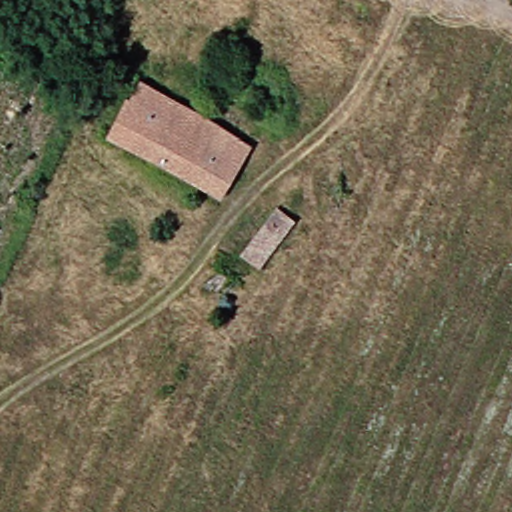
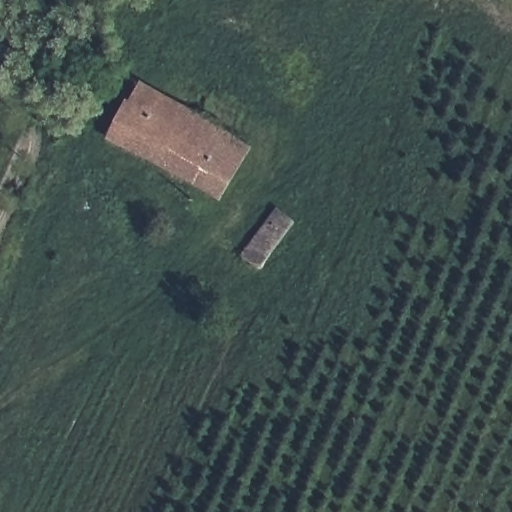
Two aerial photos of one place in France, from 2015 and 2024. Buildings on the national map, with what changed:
unchanged [(177,108),(168,126),(154,117),(135,153),(106,137),(134,84),(177,108)]
unchanged [(235,170),(168,126),(177,108),(218,132),(246,150),(235,170)]
unchanged [(235,170),(217,201),(135,153),(154,117),(168,126),(235,170)]
unchanged [(260,269),(244,259),(272,215),(288,226),(260,269)]

